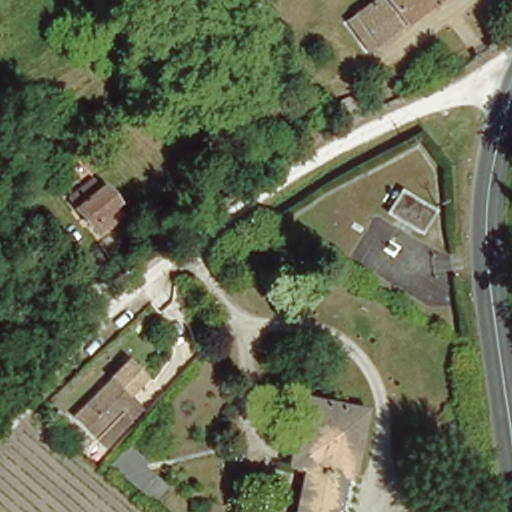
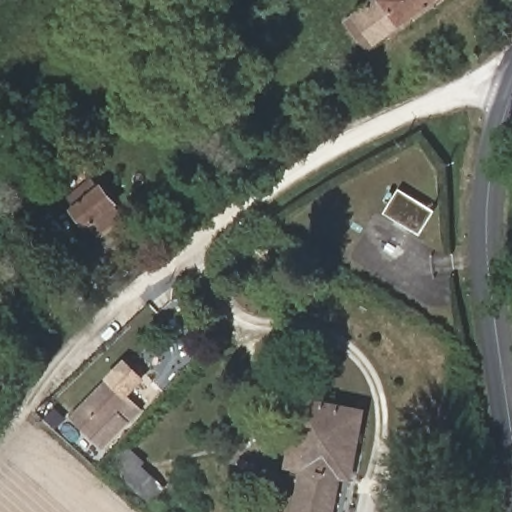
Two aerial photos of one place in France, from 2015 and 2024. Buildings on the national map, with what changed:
unchanged [(344,15),(350,10),(364,0),(426,0),(371,40),(363,46),(341,16),(344,15)]
unchanged [(204,112),(231,96),(237,93),(254,122),(248,125),(221,141),(204,112)]
unchanged [(335,131),(324,110),(353,96),(362,117),(335,131)]
unchanged [(93,179),(97,176),(112,195),(109,198),(116,207),(95,224),(89,215),(84,219),(69,199),(72,195),(66,186),(86,170),(93,179)]
unchanged [(429,206),(415,229),(382,207),(396,185),(429,206)]
unchanged [(122,416),(104,435),(97,441),(67,410),(71,406),(120,357),(136,373),(120,388),(127,395),(135,403),(122,416)]
unchanged [(365,405),(352,472),(341,470),(332,512),(295,512),(305,463),(288,460),(301,393),(365,405)]
unchanged [(162,485),(151,498),(129,478),(140,465),(162,485)]

